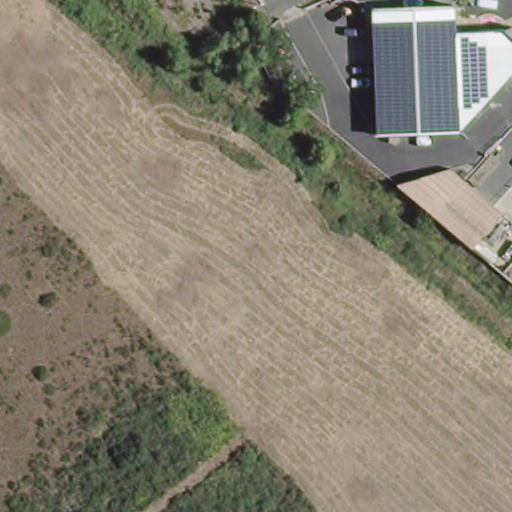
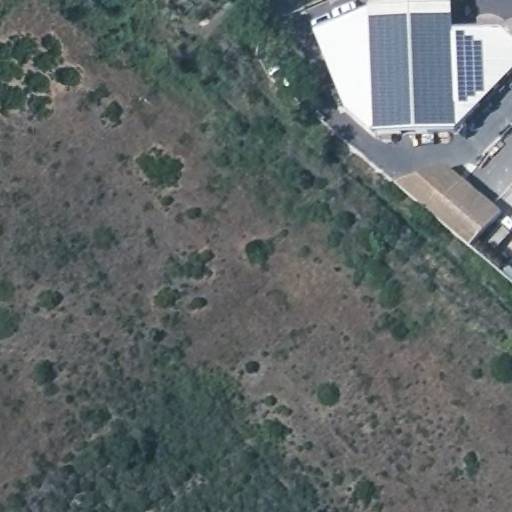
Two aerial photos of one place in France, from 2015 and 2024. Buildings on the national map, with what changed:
unchanged [(454,131),(375,134),(371,10),(449,7),(450,37),(502,36),(512,45),(512,69),(454,131)]
new [(371,13),(375,134),(371,134),(347,113),(316,34),(371,13)]
unchanged [(389,183),(443,167),(457,179),(426,213),(389,183)]
unchanged [(496,211),(466,247),(426,213),(457,179),(496,211)]

